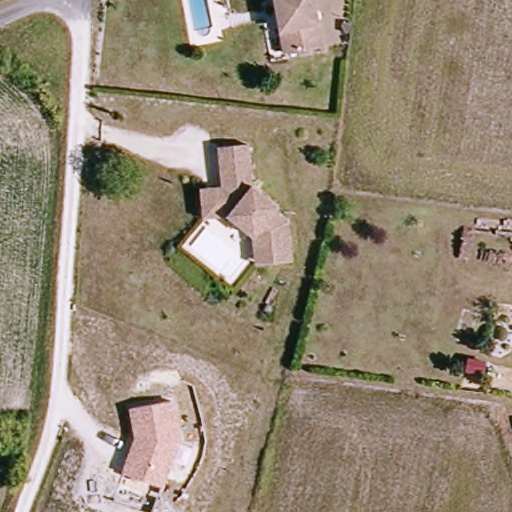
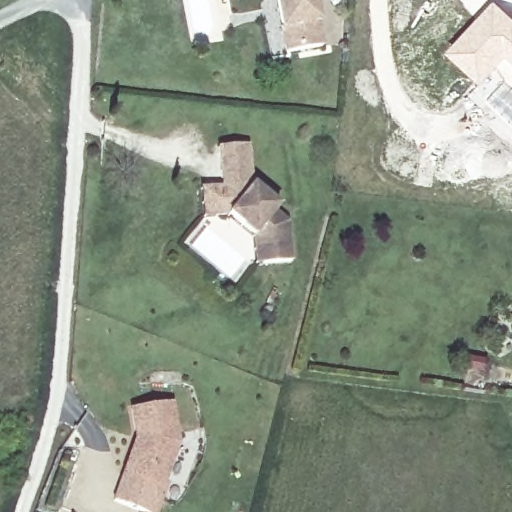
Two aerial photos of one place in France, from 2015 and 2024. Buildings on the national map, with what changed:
unchanged [(320,47),(283,54),(273,0),(311,0),(313,11),(316,22),(320,47)]
new [(512,12),(512,58),(511,57),(497,72),(483,86),(447,52),(495,0),(498,0),(512,12)]
new [(512,58),(512,86),(503,79),(497,72),(511,57),(512,58)]
new [(512,86),(512,114),(500,101),(496,104),(488,97),(503,79),(512,86)]
unchanged [(251,237),(226,217),(205,219),(202,189),(210,189),(220,187),(219,179),(216,148),(246,146),(250,186),(276,208),(272,212),(286,223),(290,262),(261,265),(253,265),(251,237)]
unchanged [(155,512),(145,512),(112,500),(135,435),(130,410),(174,401),(181,442),(155,512)]

